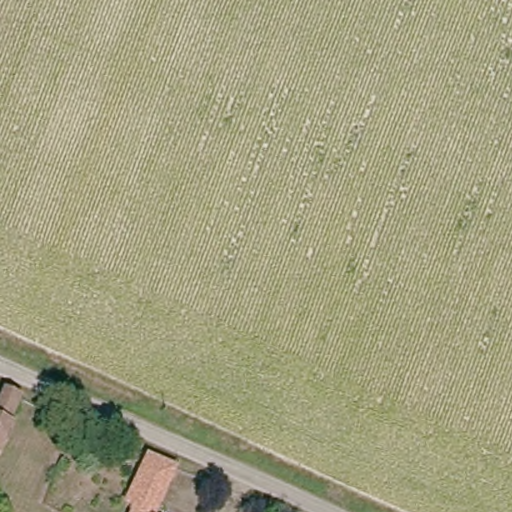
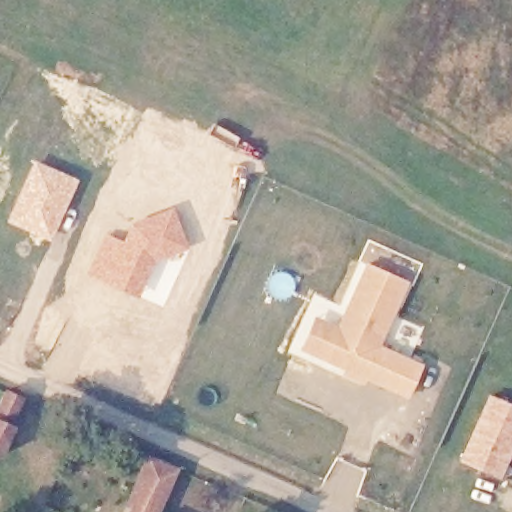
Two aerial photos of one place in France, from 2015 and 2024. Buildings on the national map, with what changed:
new [(33,159),(79,179),(50,241),(5,220),(33,159)]
new [(104,231),(121,239),(127,222),(174,205),(191,248),(162,260),(155,265),(140,295),(138,297),(84,275),(104,231)]
new [(407,281),(380,345),(423,363),(410,399),(366,380),(364,385),(341,374),(344,369),(300,350),(315,314),(338,325),(365,261),(407,281)]
unchanged [(2,391),(21,399),(11,423),(0,419),(0,398),(2,391)]
new [(512,452),(500,479),(458,461),(489,395),(512,404),(512,452)]
unchanged [(12,430),(1,460),(0,459),(0,425),(12,430)]
unchanged [(130,501),(147,455),(149,453),(177,466),(159,512),(136,512),(139,505),(130,501)]

